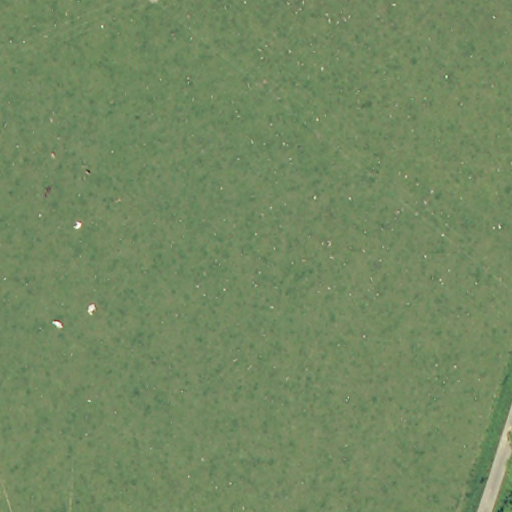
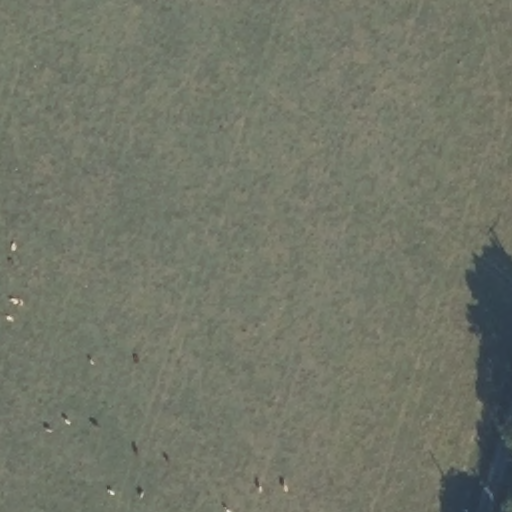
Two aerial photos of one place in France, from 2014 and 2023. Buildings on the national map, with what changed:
[]

